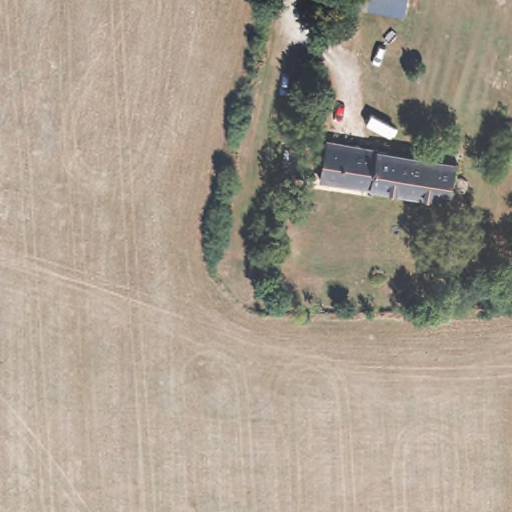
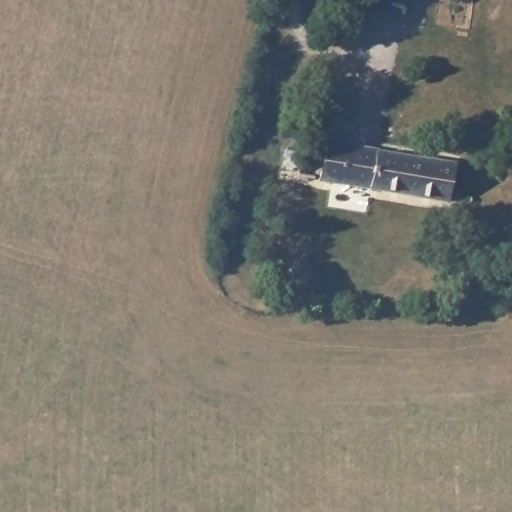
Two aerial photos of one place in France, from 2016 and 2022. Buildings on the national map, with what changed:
unchanged [(447,164),(446,179),(458,180),(456,195),(438,192),(437,200),(415,196),(336,185),(315,181),(316,176),(298,173),(302,155),(318,157),(322,140),(368,146),(367,151),(447,164)]

